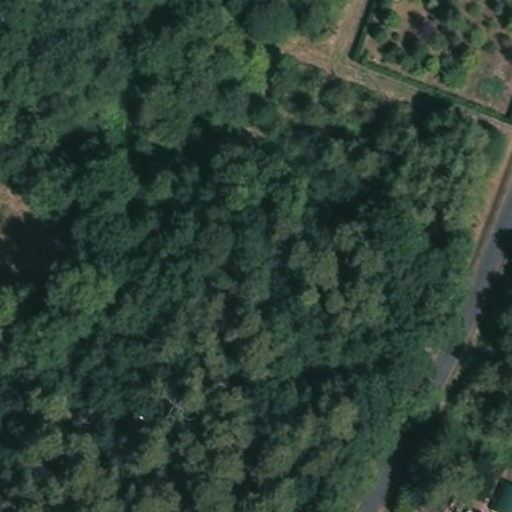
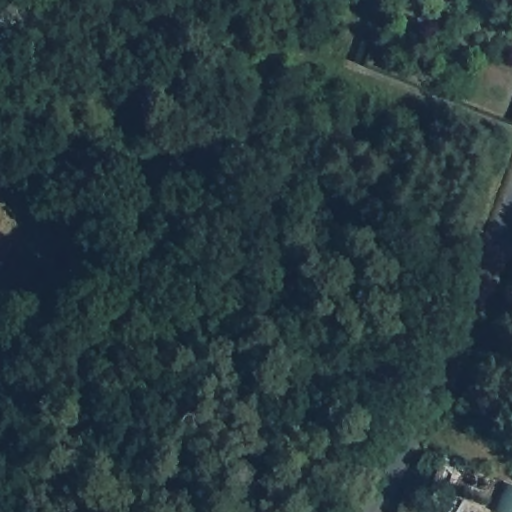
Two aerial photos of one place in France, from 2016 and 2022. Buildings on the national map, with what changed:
[]

